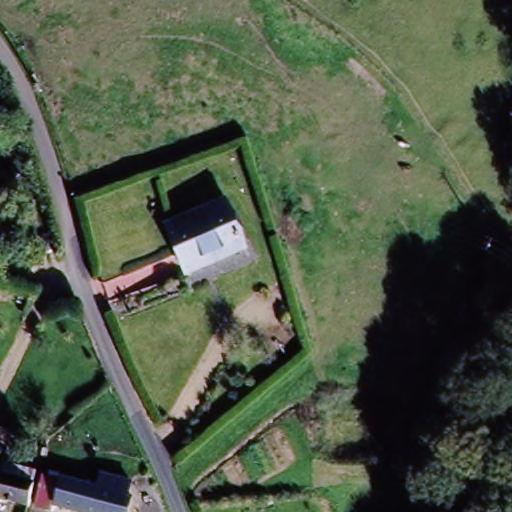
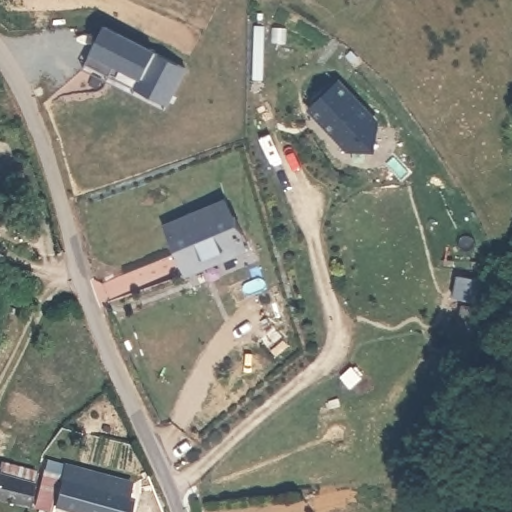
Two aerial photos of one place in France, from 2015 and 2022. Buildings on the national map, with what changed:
new [(189,67),(166,112),(154,105),(156,101),(86,61),(106,24),(189,67)]
new [(323,93),(340,80),(379,121),(377,150),(347,152),(307,111),(323,93)]
unchanged [(511,174),(512,165),(512,174),(511,174)]
unchanged [(160,223),(224,195),(249,251),(183,277),(160,223)]
unchanged [(3,465),(32,476),(27,489),(0,480),(0,455),(5,457),(3,465)]
unchanged [(133,497),(129,512),(75,512),(56,508),(62,481),(97,487),(101,473),(132,480),(129,493),(133,497)]
unchanged [(0,504),(0,480),(27,489),(19,511),(0,504)]

